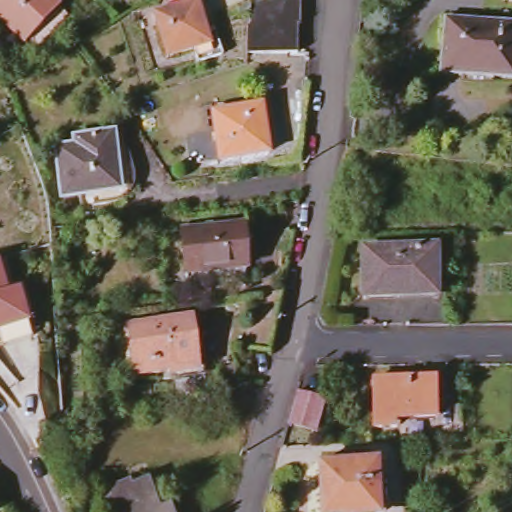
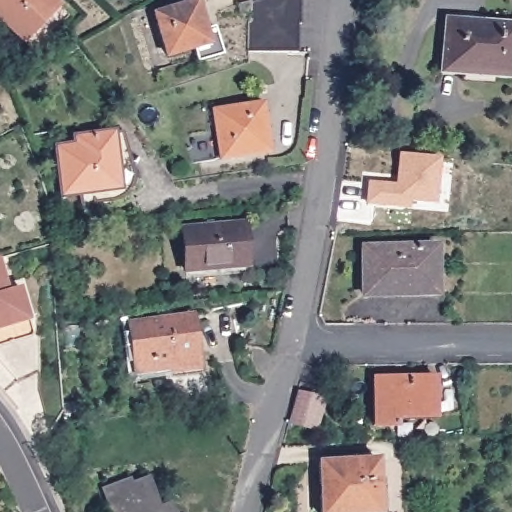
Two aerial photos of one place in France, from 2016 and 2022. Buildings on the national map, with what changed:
unchanged [(25,42),(0,18),(0,0),(51,0),(67,16),(40,45),(31,37),(25,42)]
unchanged [(251,0),(252,4),(261,0),(300,0),(300,24),(297,24),(250,23),(249,13),(240,13),(237,5),(250,0),(251,0)]
unchanged [(507,0),(512,0),(512,1),(507,1),(507,0)]
unchanged [(156,14),(196,1),(210,43),(168,55),(156,14)]
unchanged [(445,20),(512,25),(512,78),(442,72),(445,20)]
unchanged [(248,23),(250,23),(297,24),(297,52),(247,51),(248,23)]
unchanged [(215,111),(262,105),(269,151),(222,158),(215,111)]
unchanged [(65,144),(65,136),(103,132),(112,131),(123,172),(123,174),(122,180),(122,186),(120,190),(117,195),(110,200),(105,202),(97,203),(85,204),(83,193),(52,196),(46,146),(65,144)]
new [(433,206),(408,203),(407,209),(366,204),(368,181),(393,185),(397,154),(440,159),(433,206)]
unchanged [(184,229),(242,224),(245,265),(187,270),(184,229)]
unchanged [(364,248),(435,247),(436,294),(365,295),(364,248)]
unchanged [(7,286),(19,283),(28,316),(33,331),(0,341),(0,259),(7,286)]
unchanged [(130,323),(192,315),(198,369),(172,372),(172,368),(136,372),(130,323)]
unchanged [(374,379),(435,377),(435,416),(397,417),(397,426),(375,427),(374,379)]
unchanged [(296,392),(323,399),(315,430),(287,423),(296,392)]
unchanged [(320,462),(377,459),(379,512),(321,512),(320,462)]
unchanged [(105,487),(122,480),(125,486),(141,480),(153,512),(114,512),(105,487)]
unchanged [(163,509),(165,512),(155,512),(163,509)]

